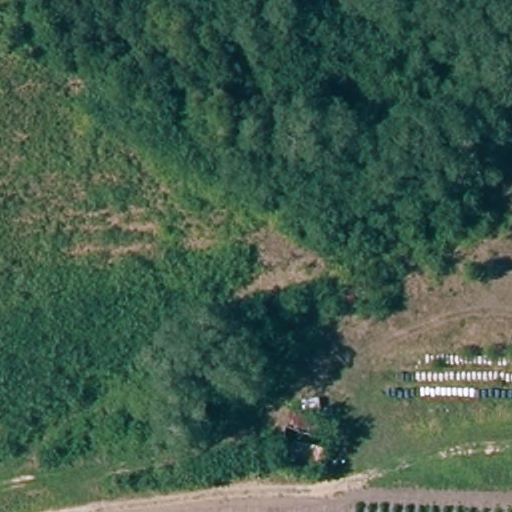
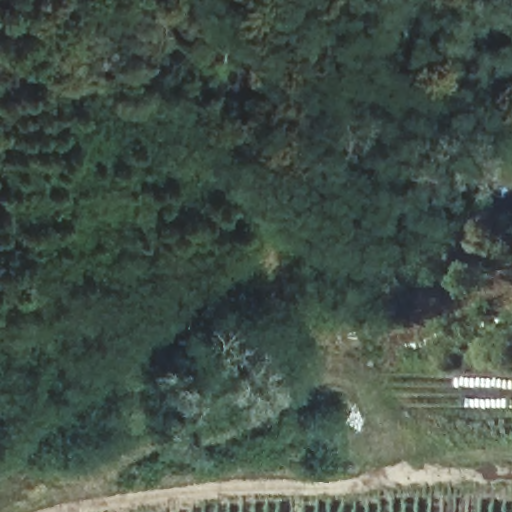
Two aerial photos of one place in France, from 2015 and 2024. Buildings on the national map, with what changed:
unchanged [(281,464),(296,414),(332,424),(317,478),(281,464)]

